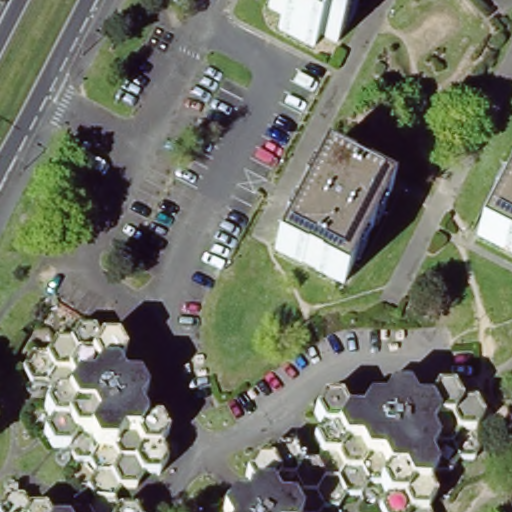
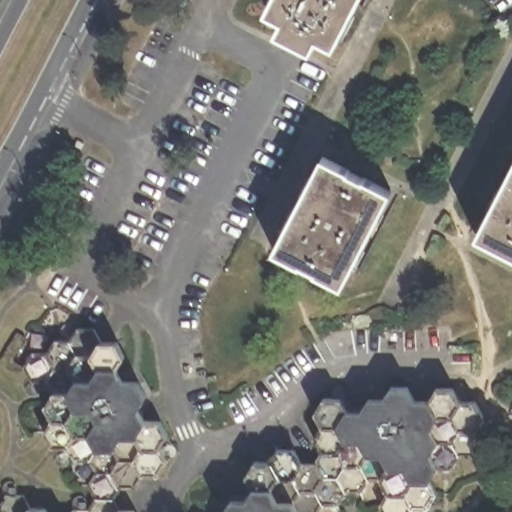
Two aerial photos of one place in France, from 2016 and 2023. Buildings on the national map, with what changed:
unchanged [(320,36),(314,49),(279,31),(286,18),(268,9),(273,0),(359,0),(336,44),(320,36)]
unchanged [(324,157),(391,192),(342,286),(275,252),(324,157)]
unchanged [(512,253),(479,236),(512,171),(512,253)]
unchanged [(86,482),(93,471),(88,460),(73,460),(68,449),(54,447),(43,426),(50,416),(43,402),(50,393),(43,380),(31,379),(23,365),(35,347),(48,349),(56,337),(69,337),(78,325),(96,325),(103,338),(116,338),(125,355),(118,365),(124,378),(138,379),(148,396),(140,407),(146,418),(159,419),(168,434),(161,445),(169,461),(161,474),(144,474),(136,485),(122,484),(111,499),(118,512),(82,512),(93,496),(86,482)]
unchanged [(363,402),(381,401),(386,390),(406,390),(412,402),(427,402),(433,390),(451,390),(457,402),(472,402),(481,417),(474,430),(481,443),(470,463),(361,407),(363,402)]
unchanged [(470,463),(454,462),(448,473),(437,473),(429,485),(434,496),(426,509),(427,512),(378,512),(384,500),(377,487),(366,487),(359,497),(344,497),(334,512),(221,512),(226,504),(243,503),(248,494),(241,481),(249,466),(265,467),(272,456),(289,455),(296,467),(310,469),(317,457),(309,443),(319,428),(311,415),(319,402),(338,402),(346,414),(358,415),(361,407),(470,463)]
unchanged [(3,493),(20,494),(28,510),(43,510),(43,512),(0,512),(0,497),(3,493)]

